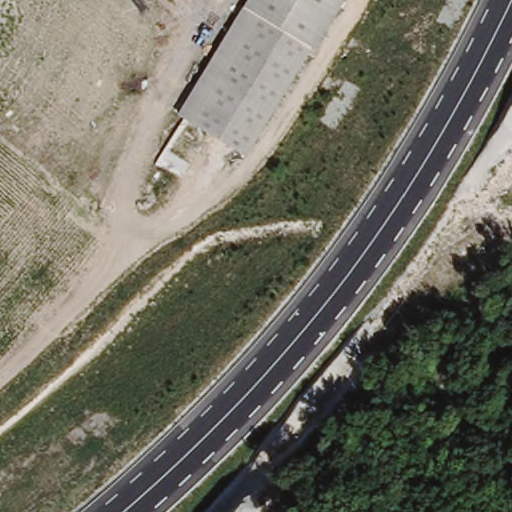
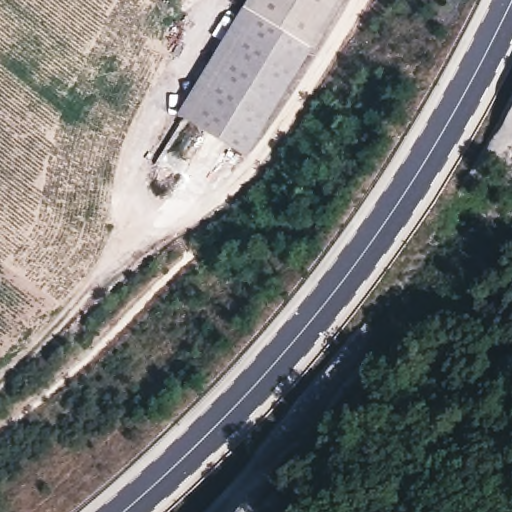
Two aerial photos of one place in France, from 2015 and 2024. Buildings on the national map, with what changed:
unchanged [(183,119),(248,12),(235,5),(238,0),(349,0),(318,51),(316,50),(251,158),(183,119)]
unchanged [(170,113),(235,5),(248,12),(183,119),(170,113)]

